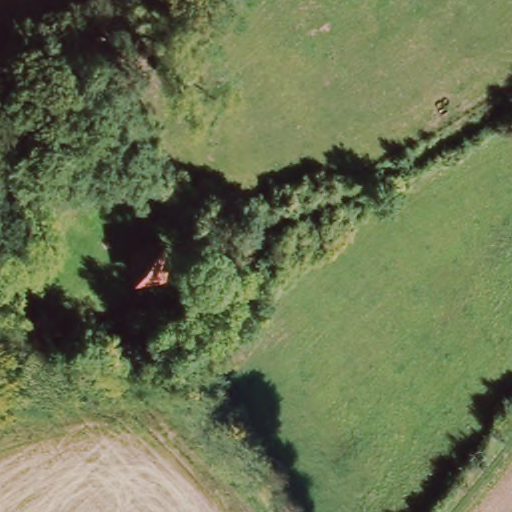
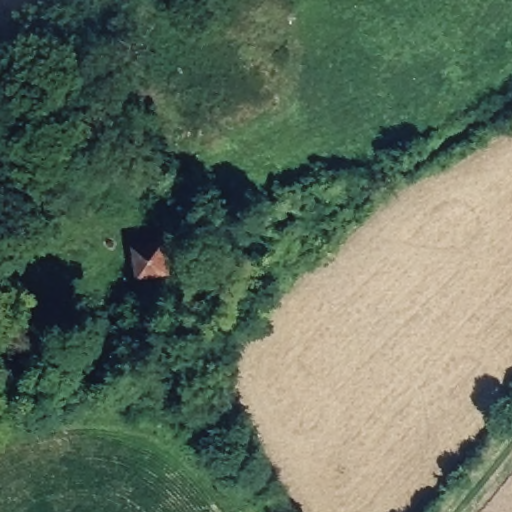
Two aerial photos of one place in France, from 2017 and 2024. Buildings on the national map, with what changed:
unchanged [(131,245),(165,240),(170,272),(135,278),(131,245)]

